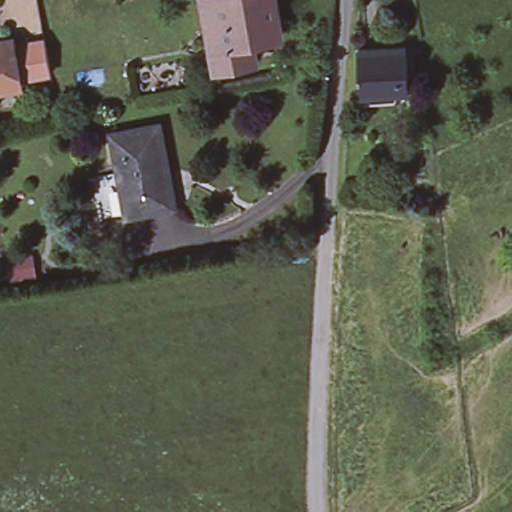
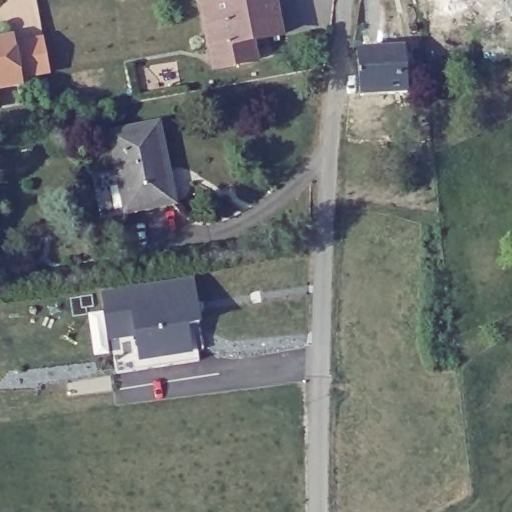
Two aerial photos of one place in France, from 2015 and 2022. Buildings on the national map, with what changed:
unchanged [(207,44),(200,2),(200,0),(271,0),(276,31),(248,36),(250,46),(209,54),(207,44)]
unchanged [(5,39),(13,78),(0,81),(0,33),(5,32),(5,39)]
unchanged [(36,33),(44,73),(13,78),(5,39),(36,33)]
unchanged [(405,47),(407,91),(361,94),(358,49),(405,47)]
unchanged [(160,121),(176,203),(126,212),(111,131),(160,121)]
new [(116,373),(110,341),(102,294),(193,279),(201,326),(196,327),(200,361),(116,373)]

